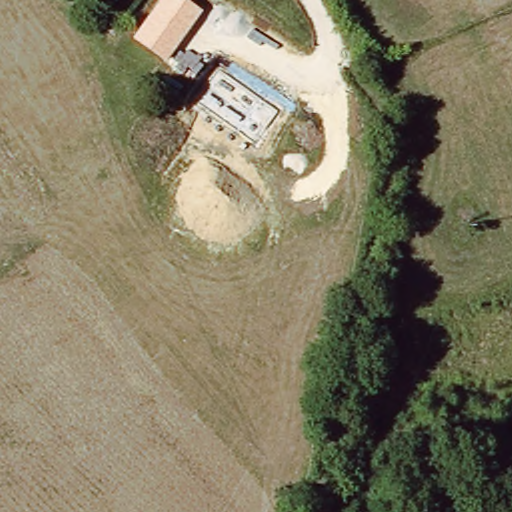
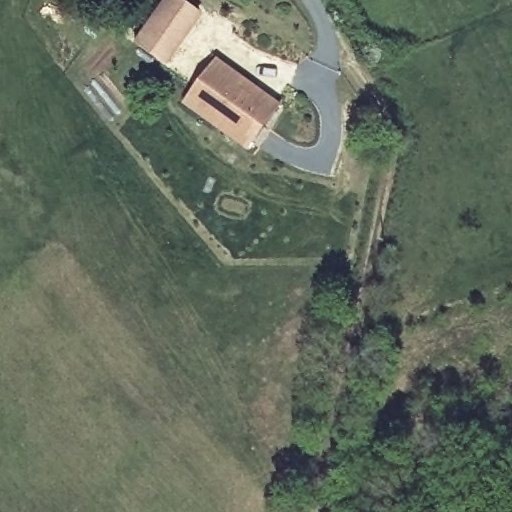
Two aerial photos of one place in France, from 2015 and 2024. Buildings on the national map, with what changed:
unchanged [(185,0),(202,12),(167,63),(133,39),(162,0),(185,0)]
new [(284,105),(250,151),(185,103),(218,58),(284,105)]

